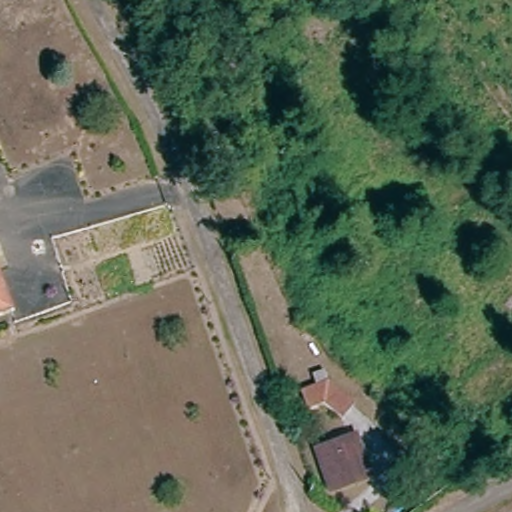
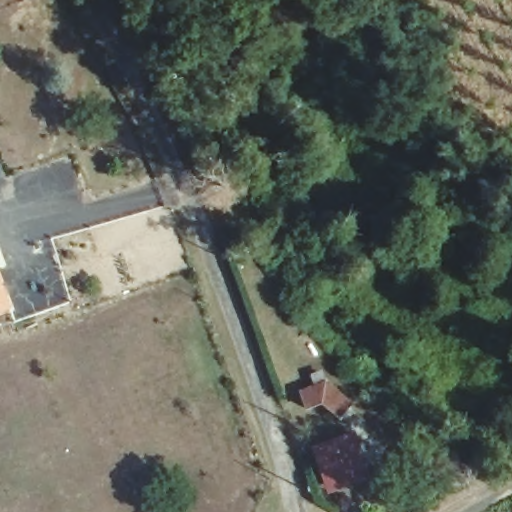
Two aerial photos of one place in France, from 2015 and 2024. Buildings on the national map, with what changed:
unchanged [(0,313),(0,283),(10,310),(0,313)]
unchanged [(318,378),(327,375),(330,384),(356,405),(346,419),(327,404),(312,410),(307,394),(322,388),(318,378)]
unchanged [(356,437),(370,479),(337,490),(323,448),(356,437)]

